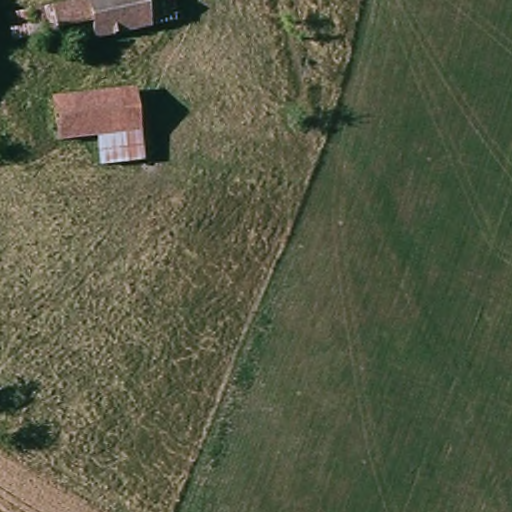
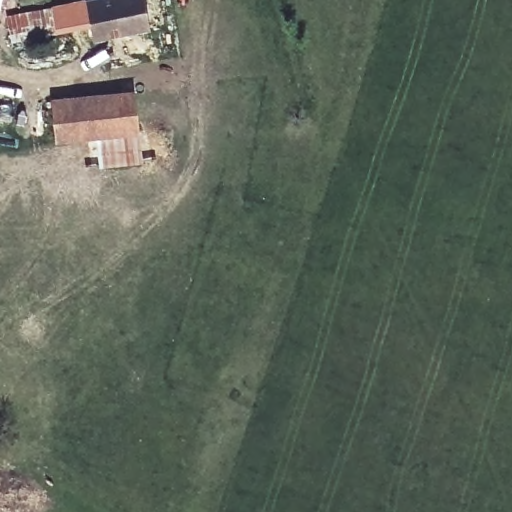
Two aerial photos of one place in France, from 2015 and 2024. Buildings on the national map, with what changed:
unchanged [(94,40),(90,23),(33,33),(29,16),(101,0),(144,0),(150,28),(94,40)]
unchanged [(54,98),(135,89),(142,130),(99,134),(58,139),(54,98)]
unchanged [(142,130),(145,158),(103,163),(99,134),(142,130)]

